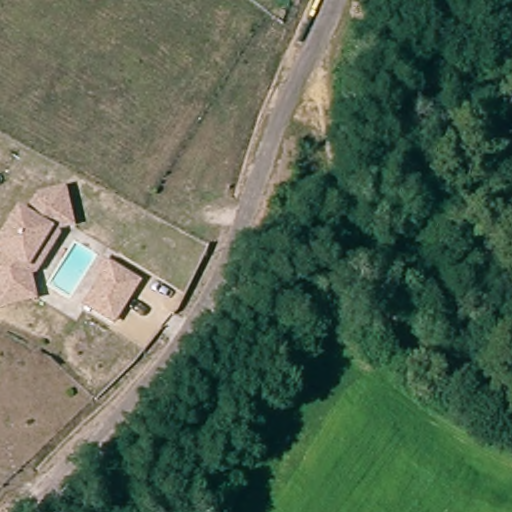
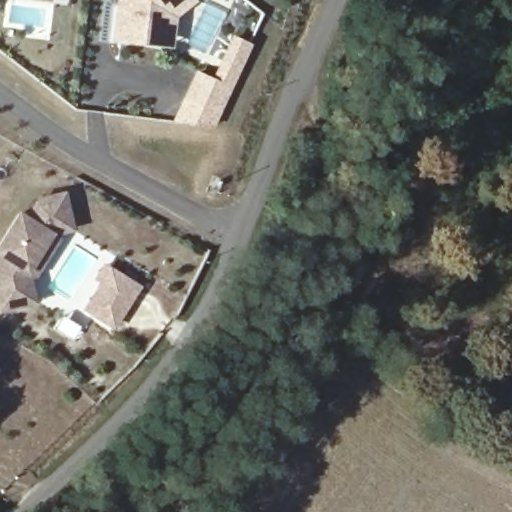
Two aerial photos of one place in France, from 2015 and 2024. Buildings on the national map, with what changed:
new [(116,0),(196,0),(176,16),(174,47),(112,42),(116,0)]
new [(196,69),(212,77),(232,34),(251,43),(222,105),(182,101),(196,69)]
unchanged [(31,274),(37,299),(2,307),(0,299),(0,262),(6,254),(0,250),(0,245),(21,212),(29,216),(41,197),(66,191),(74,226),(58,230),(60,236),(37,272),(31,274)]
unchanged [(102,282),(99,280),(106,268),(110,270),(112,272),(140,288),(116,328),(88,312),(105,284),(102,282)]

